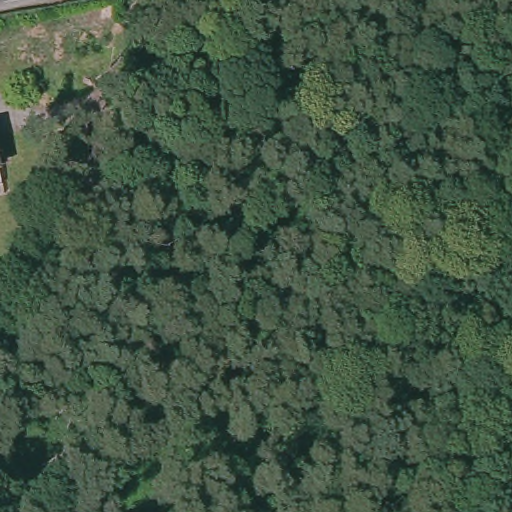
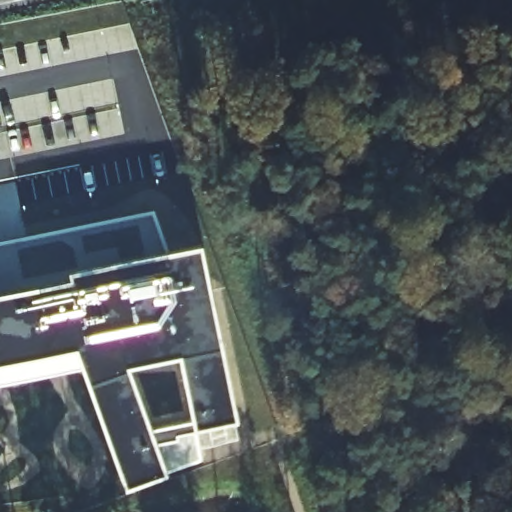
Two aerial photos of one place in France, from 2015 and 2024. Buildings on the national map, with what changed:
demolished [(149,131),(117,137),(110,92),(140,86),(149,131)]
new [(69,277),(0,292),(0,241),(154,210),(168,250),(67,270),(69,277)]
new [(0,383),(0,292),(69,277),(67,270),(168,250),(202,243),(237,418),(195,426),(175,431),(176,436),(156,439),(167,471),(125,487),(80,365),(0,383)]
new [(167,471),(156,439),(176,436),(175,431),(195,426),(202,459),(167,471)]

